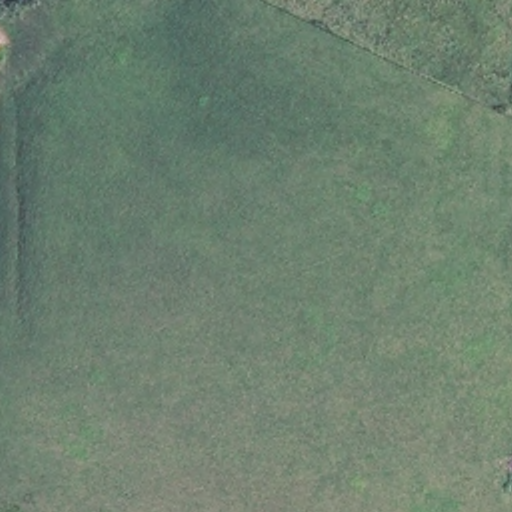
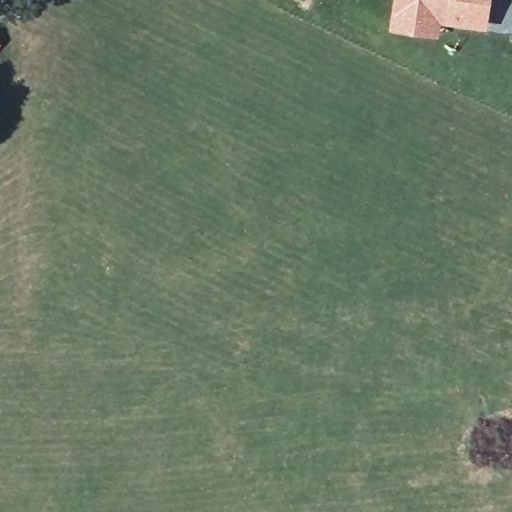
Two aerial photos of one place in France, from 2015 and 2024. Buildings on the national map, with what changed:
new [(486,30),(440,23),(439,38),(390,31),(392,14),(395,0),(490,0),(486,30)]

